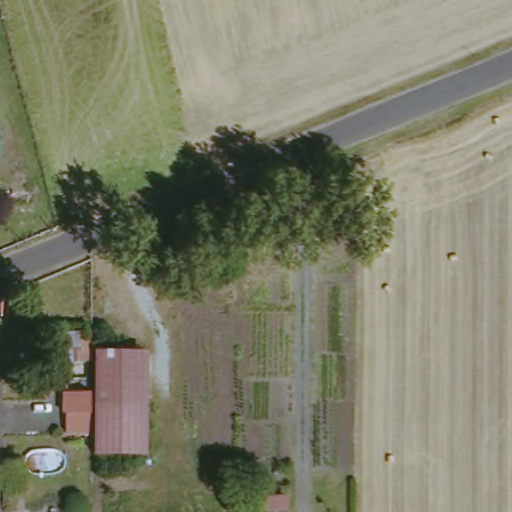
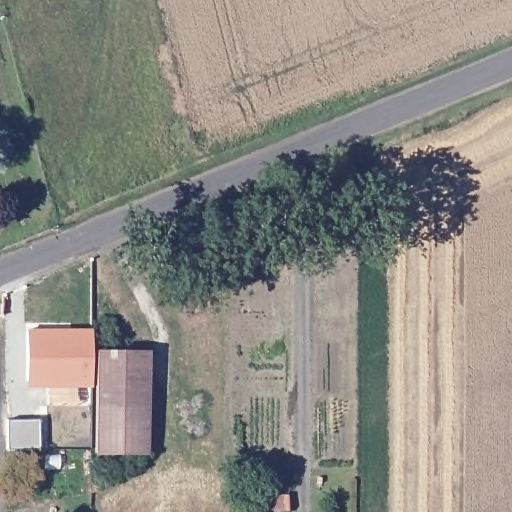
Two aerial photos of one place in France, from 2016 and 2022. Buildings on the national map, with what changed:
new [(92,329),(92,388),(27,388),(27,330),(92,329)]
unchanged [(101,353),(152,353),(152,403),(102,404),(101,353)]
demolished [(75,411),(75,392),(98,392),(98,404),(98,411),(75,411)]
unchanged [(152,403),(153,457),(102,456),(102,404),(152,403)]

